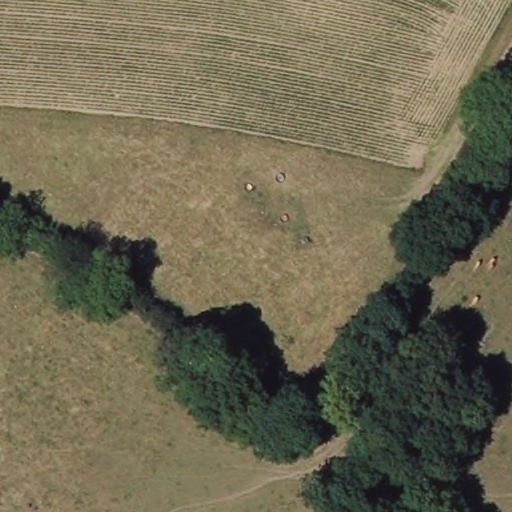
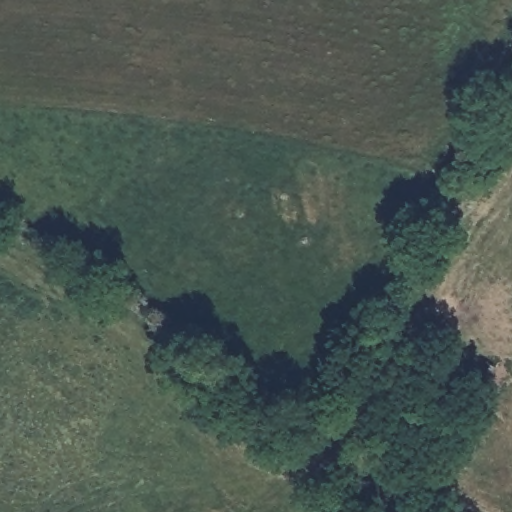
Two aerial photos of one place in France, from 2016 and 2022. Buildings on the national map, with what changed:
[]

